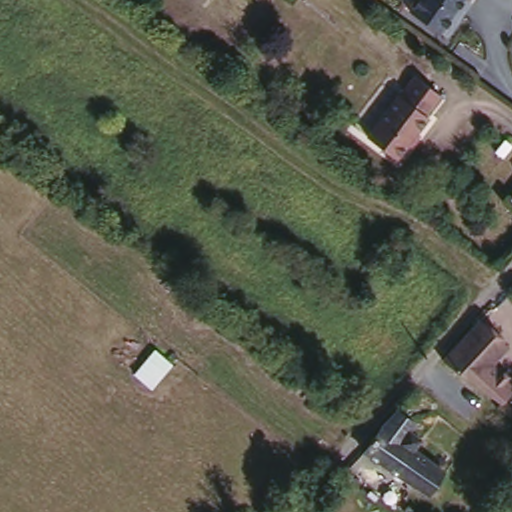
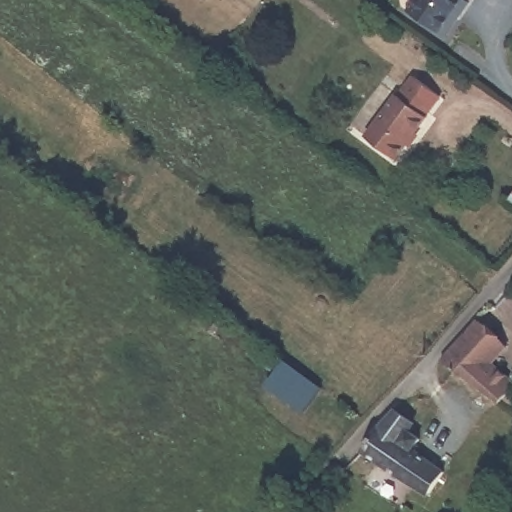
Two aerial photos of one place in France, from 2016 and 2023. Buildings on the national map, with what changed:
unchanged [(462,19),(446,40),(403,11),(412,0),(460,0),(451,11),(462,19)]
unchanged [(444,90),(391,150),(362,130),(416,68),(444,90)]
unchanged [(512,193),(512,206),(506,202),(512,193)]
unchanged [(480,372),(447,347),(479,313),(511,339),(495,355),(512,369),(512,385),(506,391),(480,372)]
new [(287,361),(328,392),(311,420),(268,385),(287,361)]
unchanged [(414,410),(404,422),(421,434),(413,444),(442,466),(424,486),(363,442),(396,398),(414,410)]

